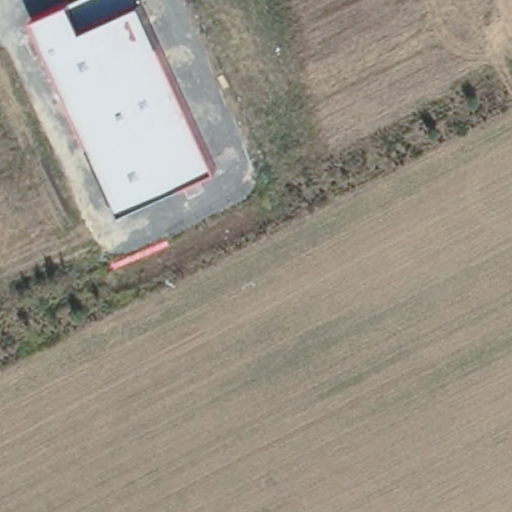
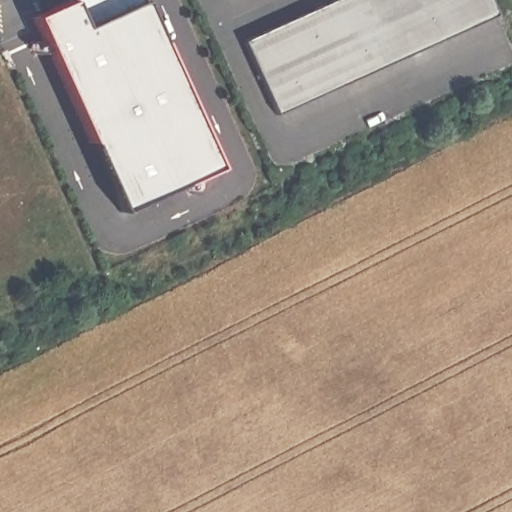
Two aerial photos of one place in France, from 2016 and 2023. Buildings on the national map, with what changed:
unchanged [(76,0),(140,0),(142,3),(217,167),(120,212),(32,19),(69,3),(76,0)]
new [(335,0),(491,0),(497,14),(279,112),(247,40),(335,0)]

